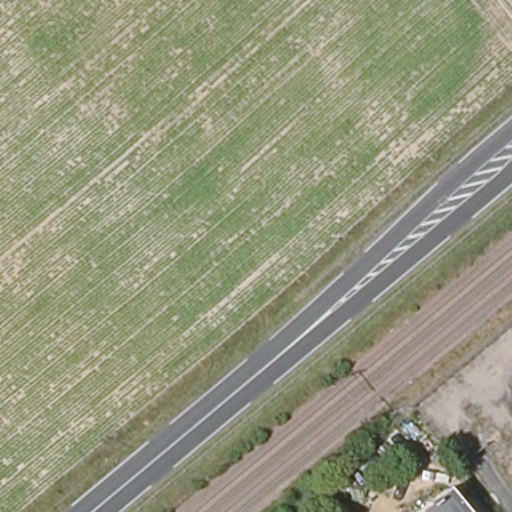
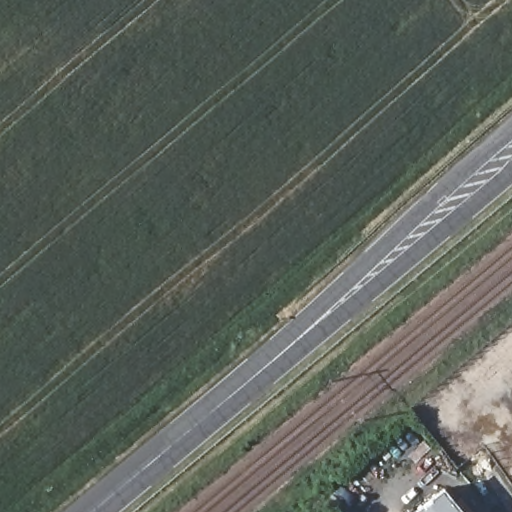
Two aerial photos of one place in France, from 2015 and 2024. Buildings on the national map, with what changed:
unchanged [(415,511),(442,487),(452,498),(458,494),(473,512),(416,512),(415,511)]

